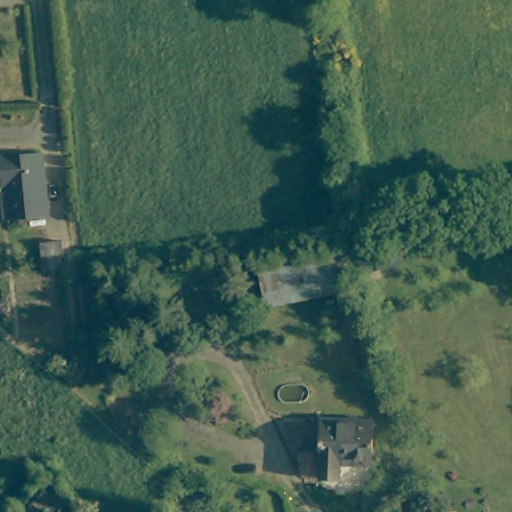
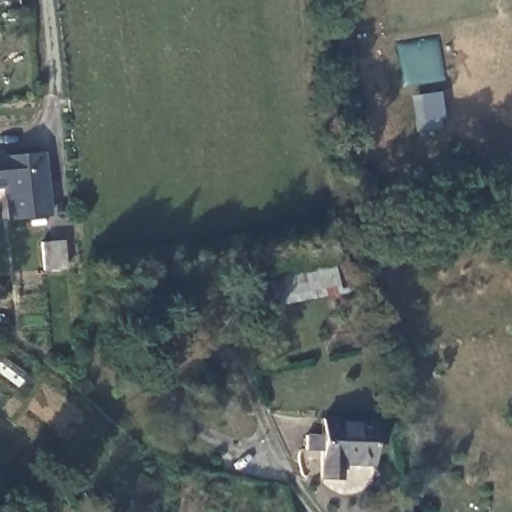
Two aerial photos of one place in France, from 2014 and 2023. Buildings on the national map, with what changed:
new [(439,91),(444,118),(416,123),(411,97),(439,91)]
unchanged [(11,217),(8,189),(0,189),(0,153),(45,149),(49,215),(11,217)]
unchanged [(66,267),(43,267),(43,242),(65,241),(66,267)]
unchanged [(344,251),(350,272),(336,276),(339,292),(265,306),(254,265),(344,251)]
unchanged [(370,422),(370,467),(337,465),(337,479),(318,478),(320,421),(370,422)]
unchanged [(2,512),(0,512),(0,486),(11,491),(2,512)]

